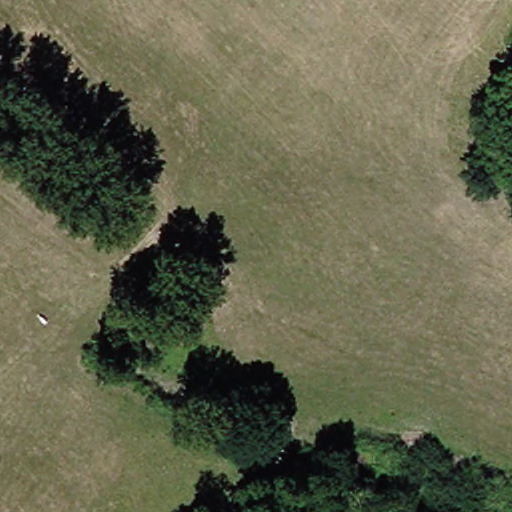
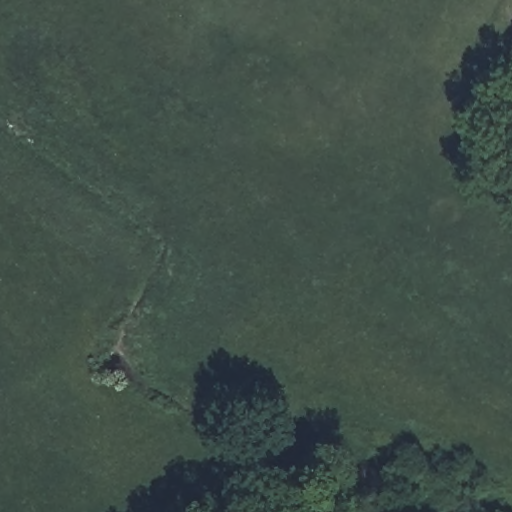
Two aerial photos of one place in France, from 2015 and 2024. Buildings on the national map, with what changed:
[]

